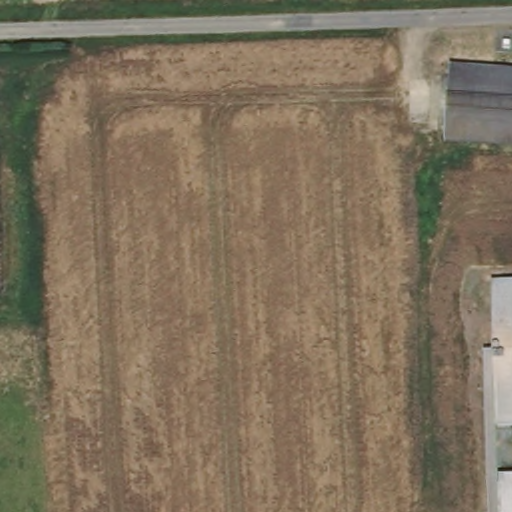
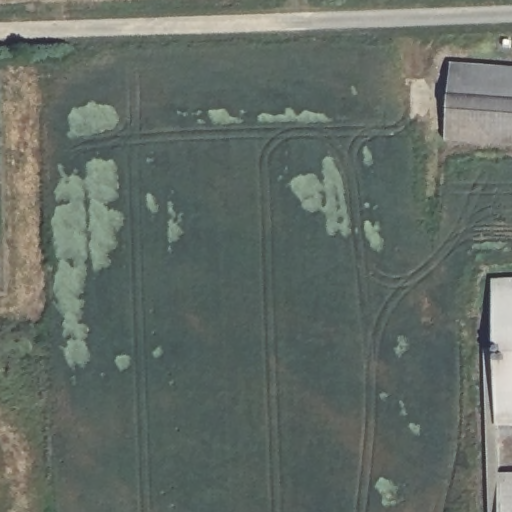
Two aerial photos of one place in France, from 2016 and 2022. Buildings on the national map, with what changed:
unchanged [(456,66),(512,71),(512,147),(450,142),(456,66)]
unchanged [(492,280),(512,279),(512,422),(497,422),(492,280)]
unchanged [(512,476),(512,512),(501,512),(500,476),(512,476)]

